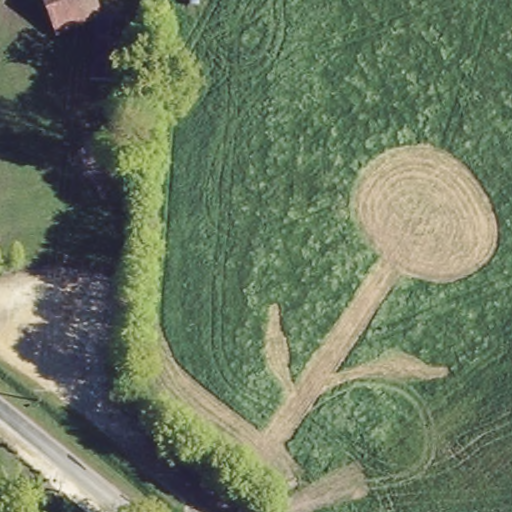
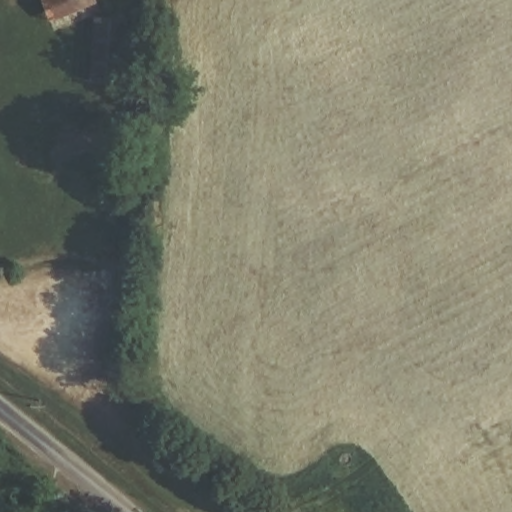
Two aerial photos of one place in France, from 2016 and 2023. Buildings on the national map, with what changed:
unchanged [(95,0),(100,9),(131,15),(120,85),(87,78),(91,16),(52,29),(38,0),(95,0)]

